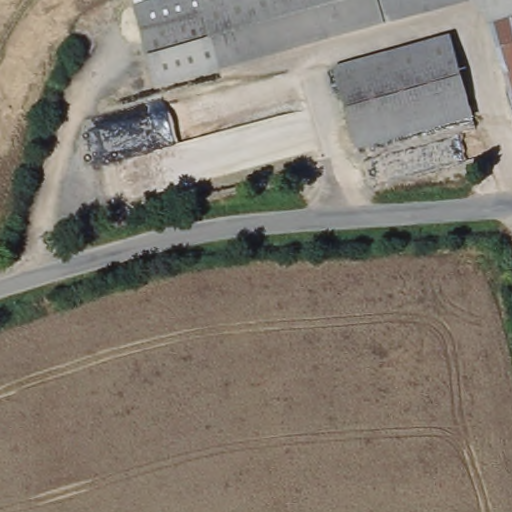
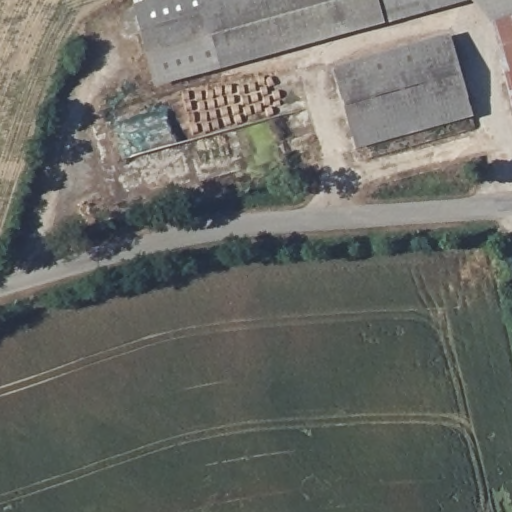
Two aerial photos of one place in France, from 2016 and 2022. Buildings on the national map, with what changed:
unchanged [(226,1),(235,38),(209,45),(146,61),(133,11),(174,0),(226,0),(226,1)]
unchanged [(232,0),(451,0),(215,64),(209,45),(235,38),(226,1),(232,0)]
unchanged [(512,24),(507,25),(474,0),(512,0),(512,24)]
unchanged [(512,26),(512,108),(491,32),(512,26)]
unchanged [(471,117),(355,149),(333,68),(450,37),(471,117)]

